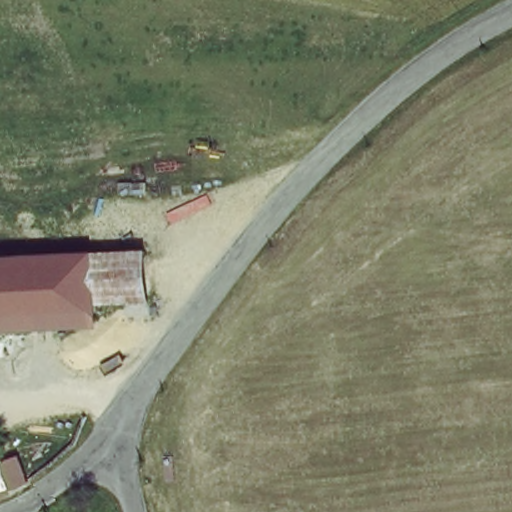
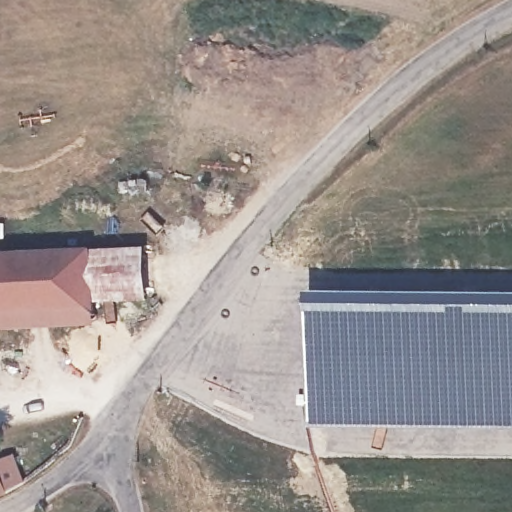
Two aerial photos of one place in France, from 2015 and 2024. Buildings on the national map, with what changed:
unchanged [(90,308),(88,259),(141,256),(143,305),(90,308)]
unchanged [(0,263),(55,260),(88,259),(90,308),(91,329),(0,335),(0,263)]
new [(307,387),(308,292),(512,294),(512,430),(306,428),(307,387)]
demolished [(150,305),(153,336),(121,338),(122,380),(105,390),(95,393),(90,315),(90,308),(143,305),(150,305)]
unchanged [(23,486),(5,498),(0,500),(0,471),(13,467),(23,486)]

